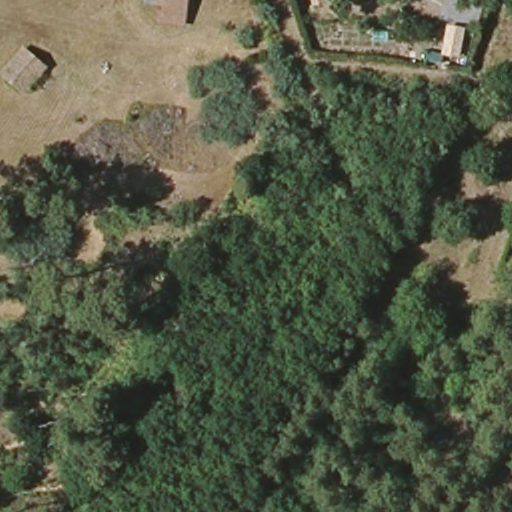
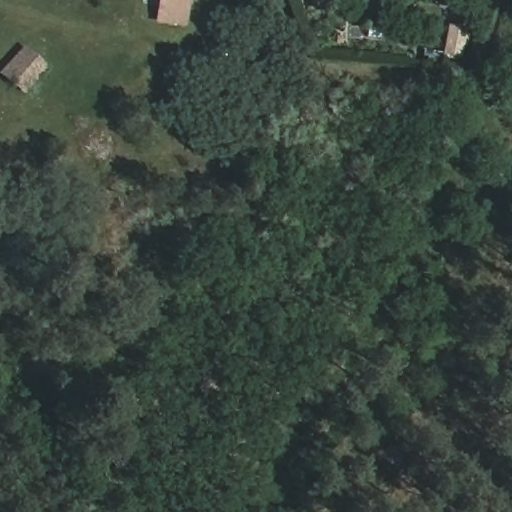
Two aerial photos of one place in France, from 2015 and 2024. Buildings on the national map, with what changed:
unchanged [(183,0),(181,21),(153,19),(155,0),(183,0)]
unchanged [(461,50),(446,49),(447,24),(462,25),(461,50)]
unchanged [(21,51),(39,63),(15,97),(0,85),(0,83),(21,51)]

